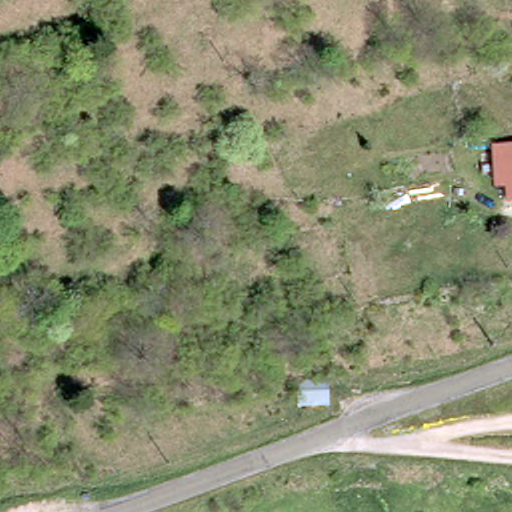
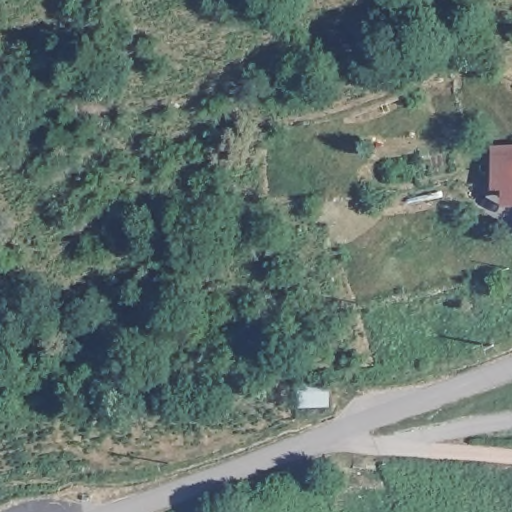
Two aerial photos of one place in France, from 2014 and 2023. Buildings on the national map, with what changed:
unchanged [(512,154),(512,189),(484,180),(484,176),(482,159),(489,158),(512,154)]
unchanged [(299,413),(296,374),(314,373),(320,372),(323,400),(324,411),(299,413)]

